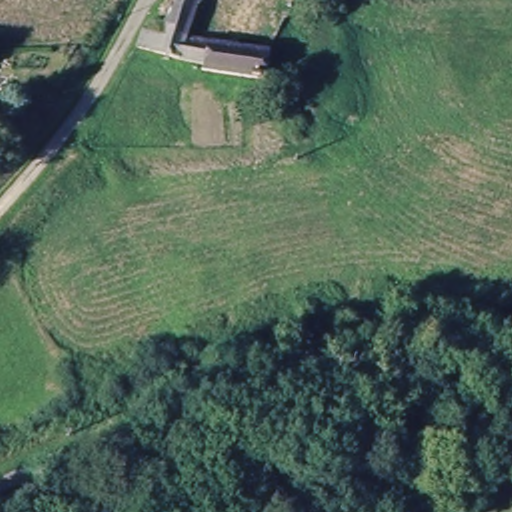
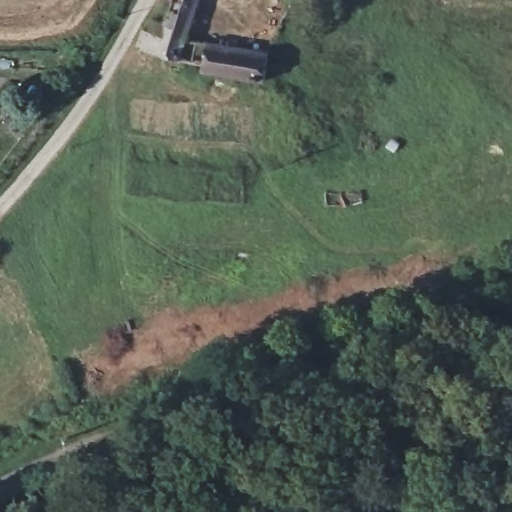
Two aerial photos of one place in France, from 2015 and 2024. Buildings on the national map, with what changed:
unchanged [(139,26),(157,31),(161,18),(169,19),(173,0),(195,0),(184,38),(262,49),(262,76),(195,70),(197,64),(132,45),(139,26)]

